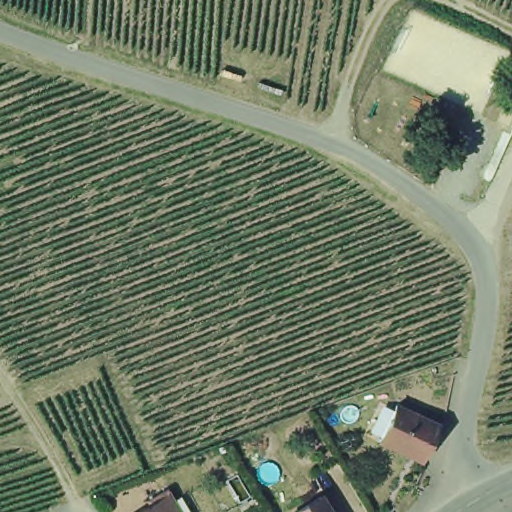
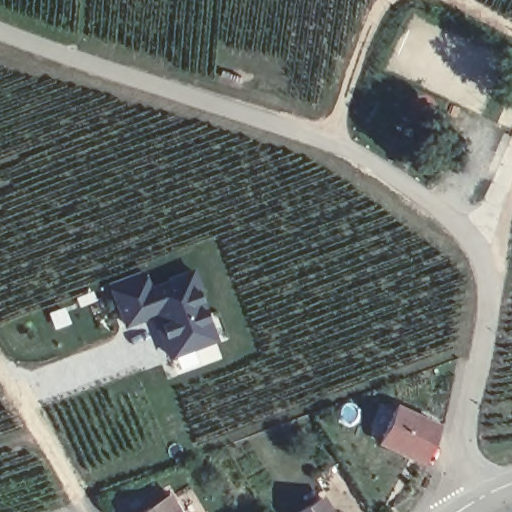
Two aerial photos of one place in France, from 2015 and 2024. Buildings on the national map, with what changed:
new [(149,270),(153,280),(195,267),(219,341),(169,359),(155,319),(124,330),(106,284),(149,270)]
unchanged [(417,464),(375,444),(392,409),(435,429),(417,464)]
unchanged [(160,501),(166,512),(140,512),(160,501)]
unchanged [(320,512),(296,512),(314,501),(320,512)]

